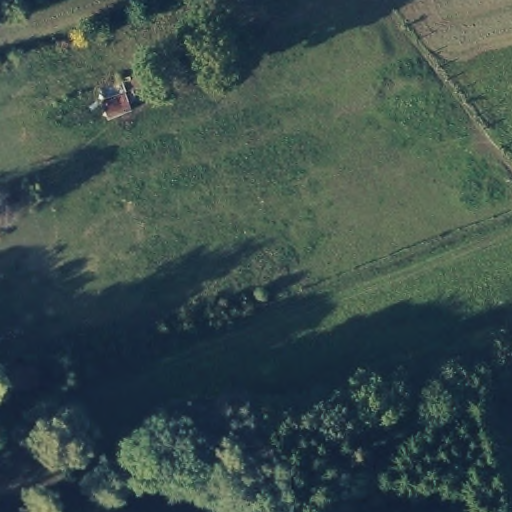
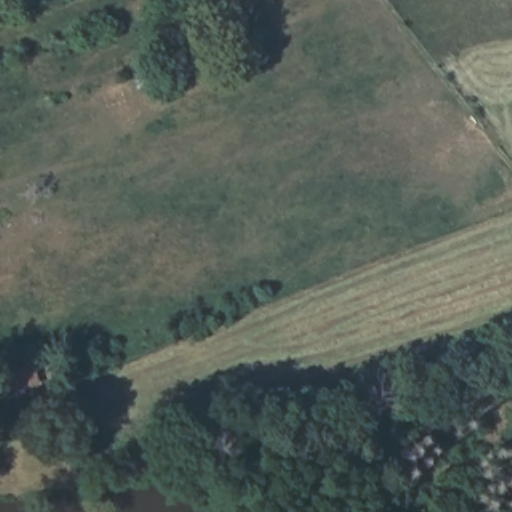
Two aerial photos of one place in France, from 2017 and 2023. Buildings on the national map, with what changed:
unchanged [(95,86),(126,74),(131,95),(101,106),(95,86)]
unchanged [(37,362),(43,399),(15,404),(7,370),(37,362)]

